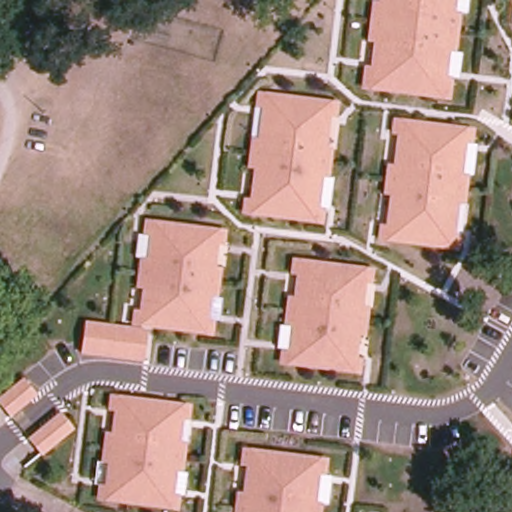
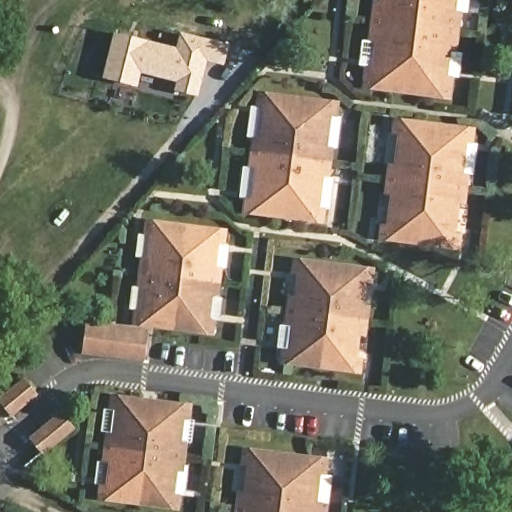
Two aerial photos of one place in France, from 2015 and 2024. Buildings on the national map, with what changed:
unchanged [(363,68),(370,69),(373,42),(367,40),(372,1),(378,2),(378,0),(458,0),(456,11),(463,12),(458,54),(451,54),(448,76),(455,77),(452,101),(361,91),(363,68)]
new [(174,82),(140,74),(136,88),(101,79),(112,33),(175,48),(180,33),(229,45),(225,61),(207,57),(196,97),(173,91),(174,82)]
unchanged [(241,215),(243,198),(250,199),(254,170),(247,169),(251,137),(257,138),(260,111),(255,110),(257,91),(341,101),(339,119),(331,117),(327,147),(334,149),(330,180),(323,179),(319,207),(326,209),(324,225),(241,215)]
unchanged [(377,241),(379,225),(387,226),(391,197),(383,196),(386,164),(394,165),(397,137),(390,136),(392,119),(475,130),(474,145),(467,144),(463,174),(470,175),(466,206),(460,205),(456,233),(462,234),(460,252),(377,241)]
unchanged [(85,321),(132,325),(133,310),(141,311),(144,287),(136,286),(139,258),(148,259),(151,237),(142,236),(143,219),(229,230),(226,246),(219,245),(216,267),(224,268),(220,298),(213,298),(210,320),(218,320),(215,337),(147,328),(144,363),(80,355),(85,321)]
unchanged [(278,365),(280,348),(287,350),(290,327),(283,325),(287,298),(295,300),(298,275),(290,275),(292,256),(375,267),(373,285),(367,284),(363,306),(370,307),(366,336),(359,336),(357,358),(364,359),(362,375),(278,365)]
unchanged [(11,417),(0,405),(0,397),(24,377),(39,395),(11,417)]
unchanged [(96,500),(98,485),(106,486),(109,463),(101,462),(105,433),(112,435),(116,412),(108,411),(110,393),(193,404),(191,422),(185,421),(181,442),(188,443),(184,473),(177,472),(174,494),(181,495),(179,511),(96,500)]
unchanged [(44,456),(28,438),(61,411),(76,430),(44,456)]
unchanged [(238,491),(245,492),(249,467),(241,466),(244,446),(330,457),(328,477),(321,477),(318,501),(325,502),(324,512),(236,512),(238,491)]

